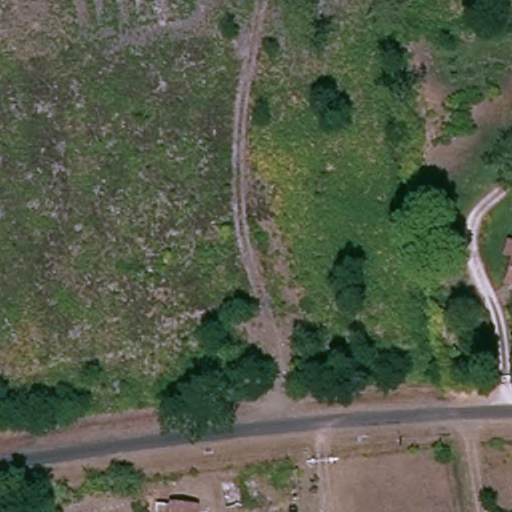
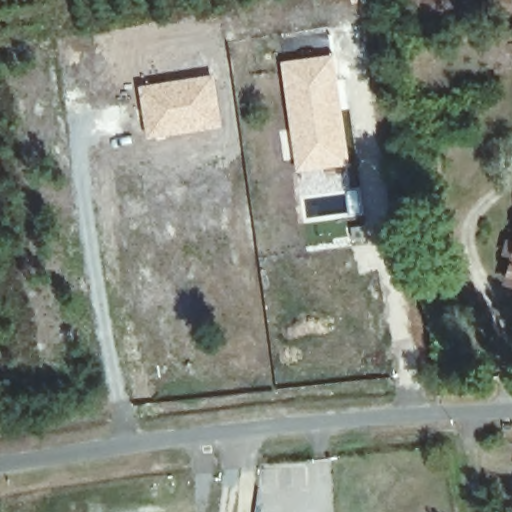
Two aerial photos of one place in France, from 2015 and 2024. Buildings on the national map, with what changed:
new [(333,54),(341,95),(348,164),(295,170),(281,61),(333,54)]
new [(214,74),(222,128),(147,140),(139,85),(214,74)]
unchanged [(508,282),(512,267),(512,284),(508,282)]
demolished [(283,509),(261,512),(223,512),(220,483),(282,477),(283,509)]

